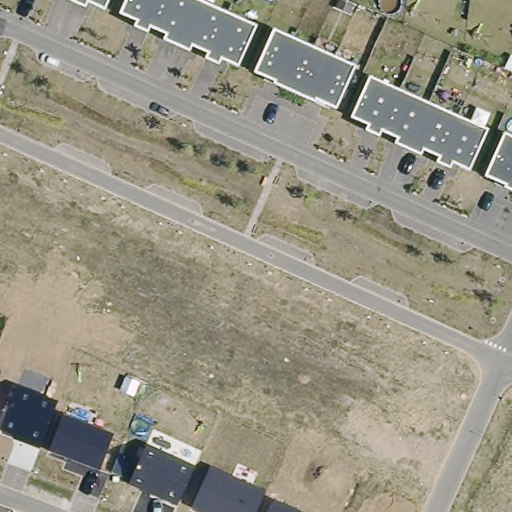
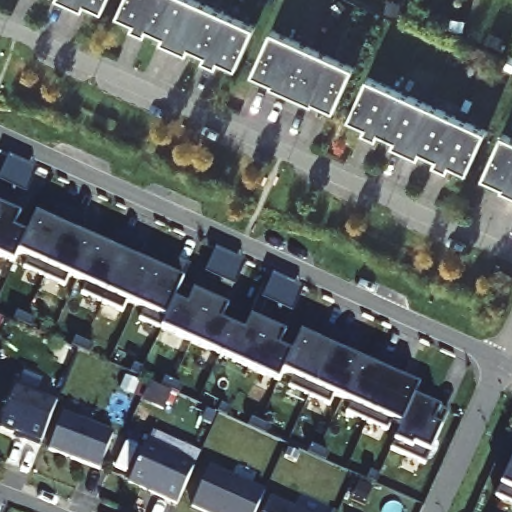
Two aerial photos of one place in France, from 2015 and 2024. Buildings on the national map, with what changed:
unchanged [(88,1),(84,7),(68,0),(108,0),(104,9),(88,1)]
unchanged [(221,58),(218,65),(204,59),(207,52),(192,45),(190,50),(165,40),(167,35),(150,25),(146,31),(133,26),(136,21),(118,14),(125,0),(199,0),(255,25),(236,65),(221,58)]
unchanged [(316,99),(314,102),(273,85),(275,81),(254,73),(274,30),(354,66),(335,107),(316,99)]
unchanged [(452,161),(449,167),(436,162),(439,156),(423,150),(421,155),(394,144),(397,139),(382,131),(379,136),(366,130),(368,125),(351,118),(369,75),(486,130),(469,169),(452,161)]
unchanged [(504,189),(506,185),(484,176),(504,134),(512,137),(512,192),(504,189)]
new [(403,422),(393,420),(388,430),(349,411),(354,402),(334,395),(330,403),(291,386),(296,375),(283,371),(279,381),(141,317),(147,307),(128,299),(122,310),(83,291),(88,281),(70,275),(66,284),(26,266),(31,256),(18,252),(14,260),(0,254),(0,205),(33,219),(36,212),(53,220),(59,207),(86,218),(80,234),(110,246),(115,233),(143,245),(139,259),(168,271),(174,257),(189,263),(179,286),(298,338),(301,332),(318,340),(324,325),(351,337),(344,352),(376,365),(381,351),(409,365),(404,380),(419,386),(414,398),(448,413),(426,462),(392,447),(403,422)]
unchanged [(16,385),(58,400),(41,448),(14,440),(15,435),(1,430),(16,385)]
unchanged [(64,414),(115,434),(101,470),(50,451),(64,414)]
unchanged [(147,445),(195,465),(178,506),(129,485),(147,445)]
new [(497,496),(512,461),(512,502),(497,496)]
unchanged [(264,490),(256,512),(203,512),(193,506),(208,467),(264,490)]
unchanged [(299,512),(267,512),(272,501),(299,512)]

